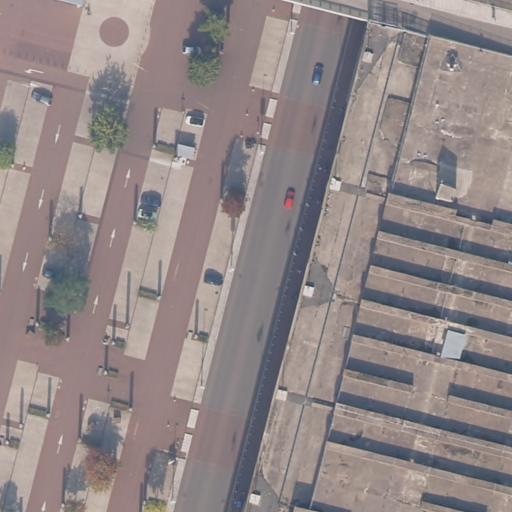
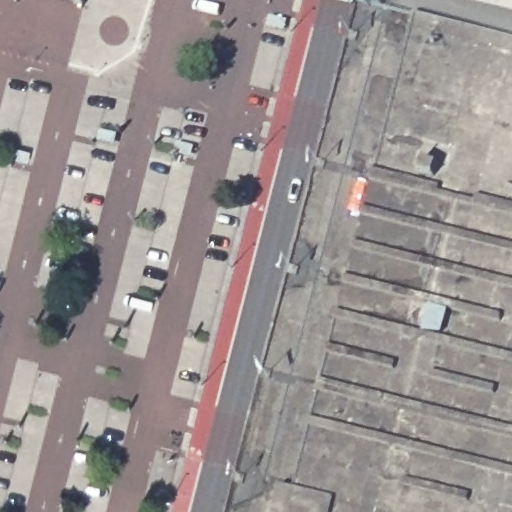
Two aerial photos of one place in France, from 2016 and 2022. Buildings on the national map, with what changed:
unchanged [(390,0),(512,0),(512,512),(262,512),(390,0)]

